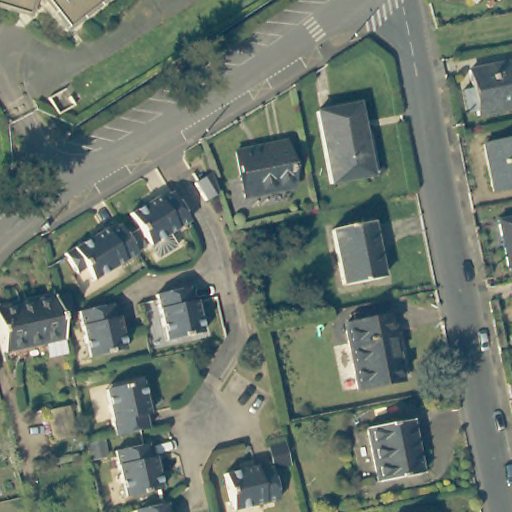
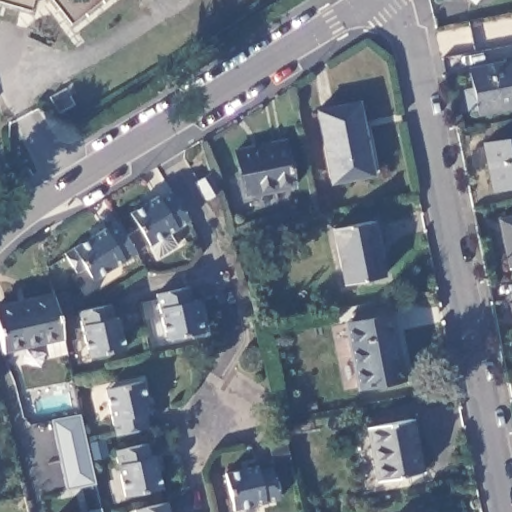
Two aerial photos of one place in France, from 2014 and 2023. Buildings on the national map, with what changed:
unchanged [(0,1),(0,0),(36,0),(33,11),(0,1)]
unchanged [(53,0),(104,0),(70,24),(53,0)]
unchanged [(473,0),(480,0),(477,4),(473,0)]
unchanged [(470,69),(512,60),(512,106),(478,112),(470,69)]
unchanged [(369,179),(331,185),(319,115),(356,107),(369,179)]
unchanged [(488,144),(512,139),(512,187),(497,190),(488,144)]
unchanged [(296,184),(246,194),(238,149),(287,140),(296,184)]
unchanged [(215,195),(205,201),(195,185),(209,175),(215,195)]
unchanged [(158,200),(169,192),(185,220),(145,244),(128,214),(128,209),(137,204),(142,204),(155,195),(158,200)]
unchanged [(502,219),(512,217),(512,265),(511,265),(502,219)]
unchanged [(131,249),(86,277),(77,265),(70,270),(59,250),(72,241),(73,238),(80,235),(84,236),(101,225),(103,229),(114,222),(131,249)]
unchanged [(385,282),(345,290),(335,234),(374,227),(385,282)]
unchanged [(186,303),(189,303),(196,333),(160,341),(149,293),(182,286),(186,303)]
unchanged [(2,345),(0,337),(0,302),(52,288),(62,330),(2,345)]
unchanged [(111,321),(115,320),(122,353),(87,361),(76,314),(109,307),(111,321)]
unchanged [(404,380),(360,388),(348,325),(392,316),(404,380)]
unchanged [(148,412),(142,414),(146,428),(114,435),(106,390),(141,382),(148,412)]
new [(86,442),(102,440),(106,457),(89,460),(95,482),(66,490),(51,420),(78,415),(86,442)]
unchanged [(421,470),(378,479),(368,425),(411,417),(421,470)]
unchanged [(154,458),(157,458),(163,487),(127,495),(118,451),(151,443),(154,458)]
unchanged [(276,500),(230,510),(223,472),(254,465),(255,469),(268,466),(276,500)]
unchanged [(171,512),(138,512),(136,506),(168,500),(171,512)]
new [(101,512),(79,512),(100,508),(101,512)]

